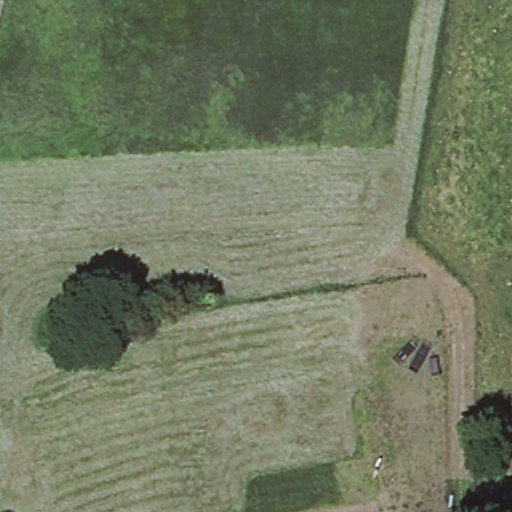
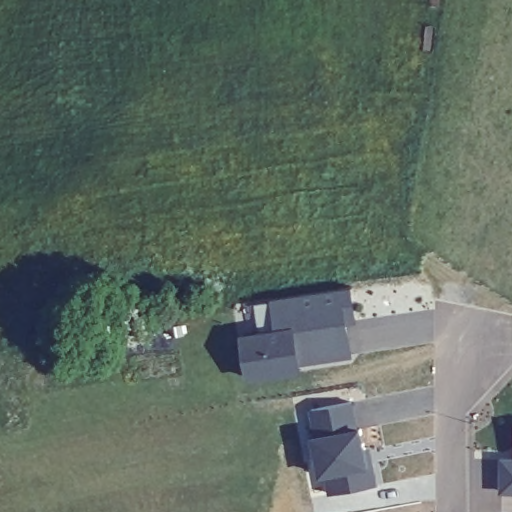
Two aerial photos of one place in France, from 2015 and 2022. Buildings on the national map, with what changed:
new [(360,284),(357,285),(360,313),(364,313),(365,324),(354,327),(360,359),(304,371),(305,376),(244,384),(235,329),(270,324),(265,291),(359,278),(360,284)]
new [(357,426),(363,424),(371,464),(376,462),(379,485),(328,494),(324,477),(319,478),(313,437),(309,407),(354,399),(357,426)]
new [(500,456),(512,457),(512,494),(500,494),(500,456)]

